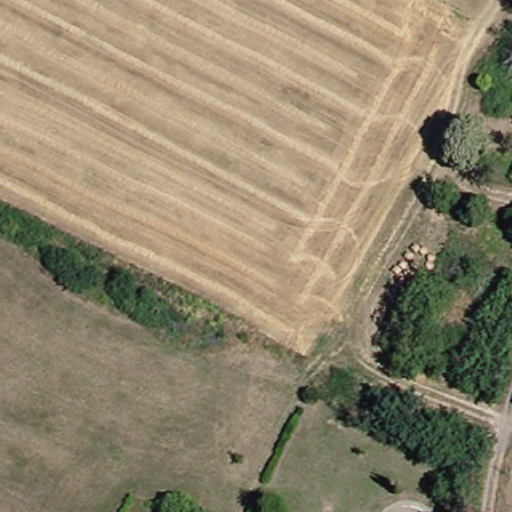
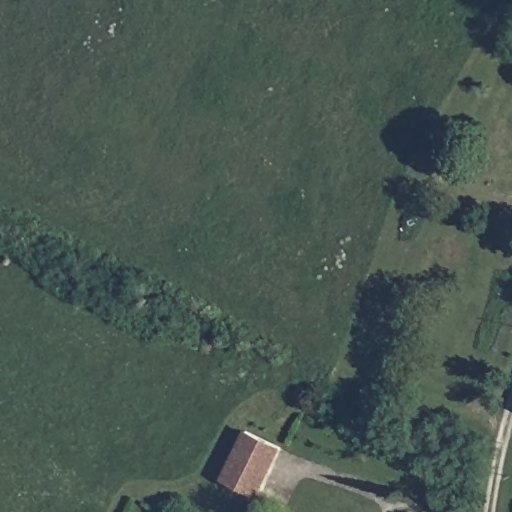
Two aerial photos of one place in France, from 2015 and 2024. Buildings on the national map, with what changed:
new [(245,428),(282,446),(260,495),(222,476),(245,428)]

